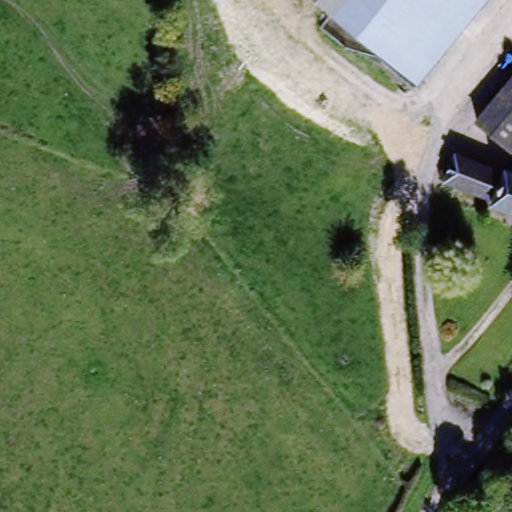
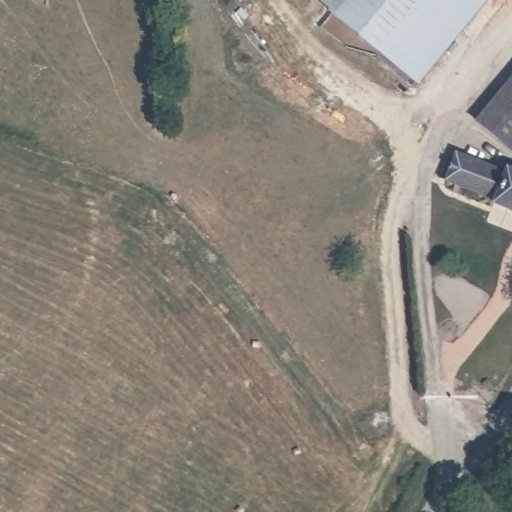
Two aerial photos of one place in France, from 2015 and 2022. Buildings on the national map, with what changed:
unchanged [(328,16),(311,0),(343,0),(329,17),(328,16)]
unchanged [(329,17),(343,0),(494,0),(415,90),(329,17)]
unchanged [(512,71),(512,111),(489,137),(469,121),(512,71)]
unchanged [(512,111),(512,156),(489,137),(512,111)]
unchanged [(432,188),(439,171),(450,174),(453,163),(505,180),(496,208),(444,191),(432,188)]
unchanged [(496,208),(505,180),(508,171),(512,172),(512,216),(495,211),(496,208)]

